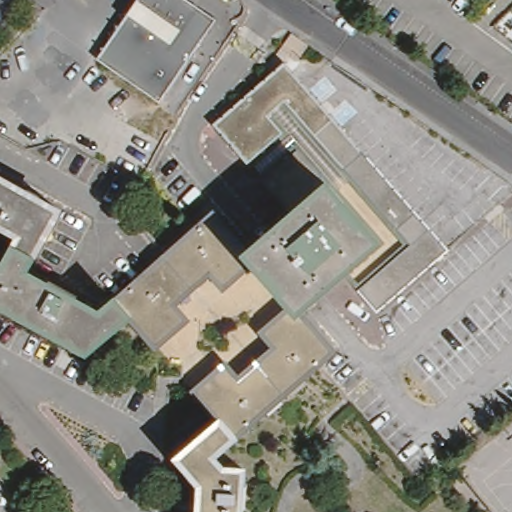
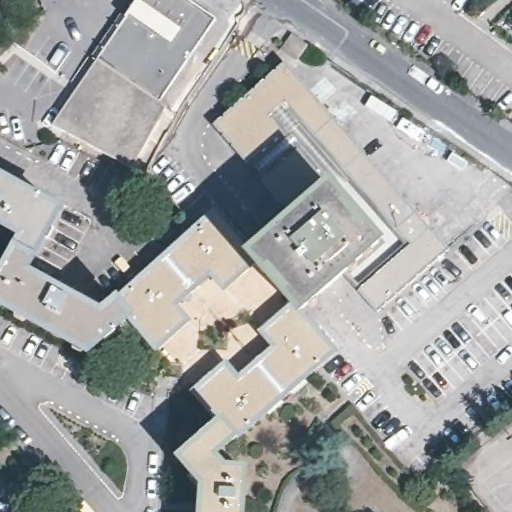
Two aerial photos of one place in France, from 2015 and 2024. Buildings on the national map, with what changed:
unchanged [(141,0),(195,0),(220,17),(164,100),(102,57),(141,0)]
new [(164,100),(168,104),(133,169),(52,124),(102,57),(164,100)]
unchanged [(219,118),(290,58),(455,248),(382,310),(362,287),(410,241),(308,121),(255,162),(219,118)]
unchanged [(92,354),(0,303),(0,272),(21,236),(0,225),(0,167),(71,206),(36,267),(105,305),(120,290),(140,314),(134,319),(92,354)]
unchanged [(292,302),(257,263),(247,251),(253,246),(334,175),(390,238),(310,309),(303,315),(292,302)]
unchanged [(220,205),(253,246),(247,251),(257,263),(225,288),(214,275),(180,303),(192,317),(155,349),(134,319),(140,314),(120,290),(220,205)]
unchanged [(342,352),(247,432),(227,410),(220,415),(192,387),(232,355),(242,369),(275,343),(262,329),(292,302),(303,315),(310,309),(342,352)]
unchanged [(174,456),(220,415),(227,410),(247,432),(225,454),(231,460),(253,463),(249,512),(198,512),(200,484),(174,456)]

